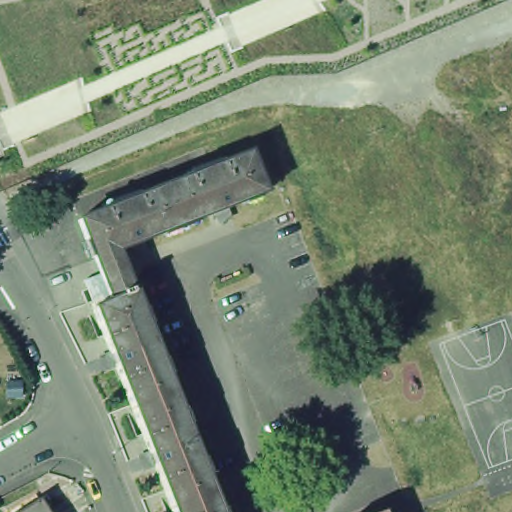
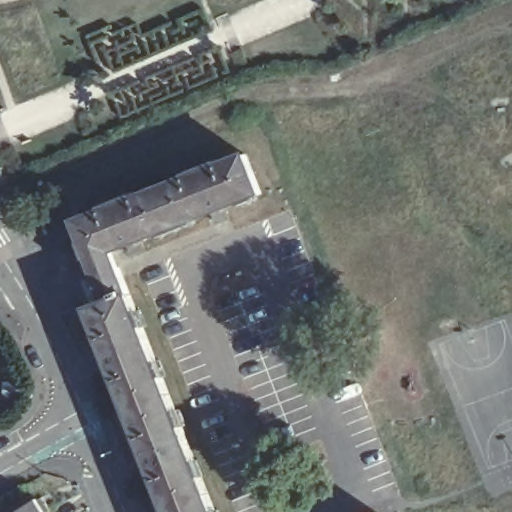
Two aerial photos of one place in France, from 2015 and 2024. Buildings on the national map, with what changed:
unchanged [(261,200),(225,215),(226,218),(215,222),(214,219),(177,234),(163,197),(188,186),(186,179),(208,170),(211,177),(247,163),(261,200)]
unchanged [(131,419),(115,377),(113,377),(108,364),(109,363),(91,318),(94,316),(85,290),(99,285),(99,284),(93,268),(78,229),(114,215),(111,209),(135,199),(138,206),(163,197),(177,234),(139,249),(139,251),(129,255),(129,254),(113,259),(120,275),(169,403),(131,419)]
unchanged [(153,474),(150,474),(146,462),(148,461),(131,419),(169,403),(208,502),(182,512),(168,512),(153,474)]
unchanged [(41,502),(47,512),(25,512),(41,502)]
unchanged [(213,512),(182,512),(208,502),(213,512)]

